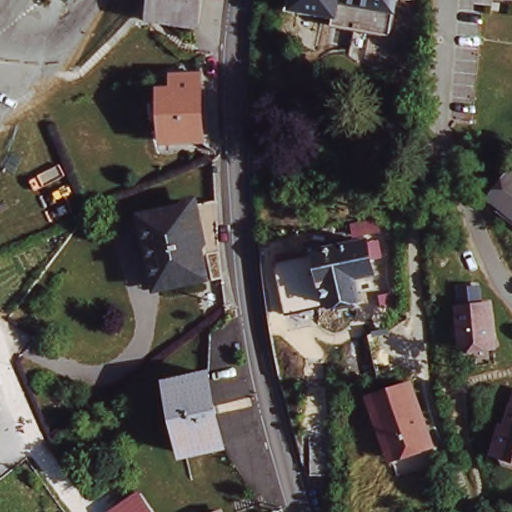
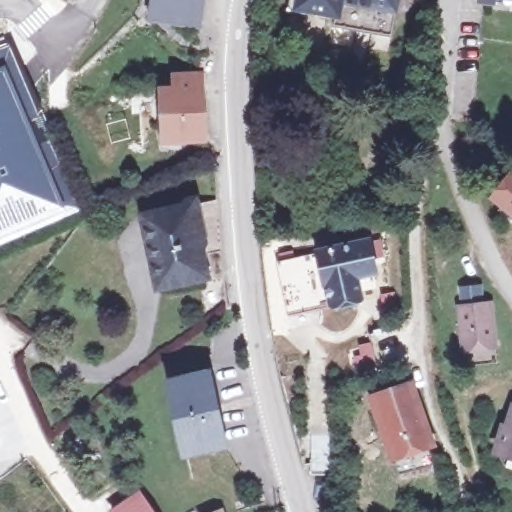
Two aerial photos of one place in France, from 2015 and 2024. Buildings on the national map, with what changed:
unchanged [(154,15),(156,0),(194,0),(192,20),(154,15)]
unchanged [(325,27),(326,22),(327,16),(290,9),(292,0),(389,0),(382,38),(325,27)]
new [(82,213),(0,248),(0,42),(10,38),(82,213)]
unchanged [(158,94),(169,92),(168,77),(198,77),(200,139),(162,141),(158,94)]
unchanged [(489,202),(494,196),(488,191),(502,172),(508,177),(512,180),(512,220),(489,202)]
unchanged [(190,207),(197,244),(192,246),(197,275),(157,283),(144,217),(190,207)]
unchanged [(310,246),(310,243),(359,233),(365,264),(349,267),(354,288),(348,289),(349,294),(325,300),(324,293),(319,295),(319,292),(312,294),(302,247),(310,246)]
unchanged [(461,346),(460,338),(457,302),(487,299),(491,336),(492,342),(461,346)]
unchanged [(407,373),(428,436),(392,450),(370,387),(407,373)]
unchanged [(205,375),(221,447),(183,454),(167,382),(205,375)]
unchanged [(499,464),(492,451),(494,447),(499,427),(504,428),(512,401),(512,468),(499,464)]
unchanged [(306,432),(324,431),(325,468),(308,469),(308,460),(306,432)]
unchanged [(138,494),(150,512),(109,512),(138,494)]
unchanged [(214,508),(215,512),(205,512),(214,508)]

